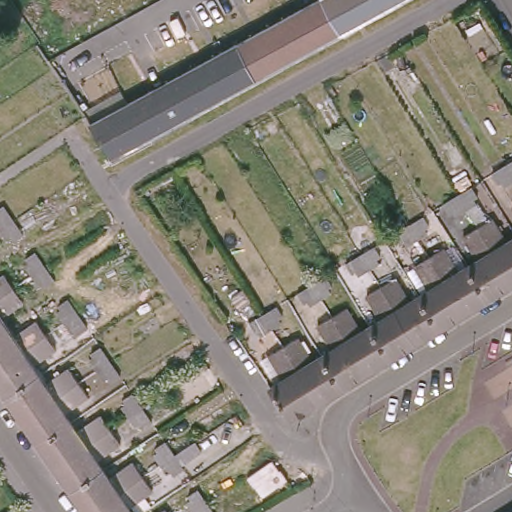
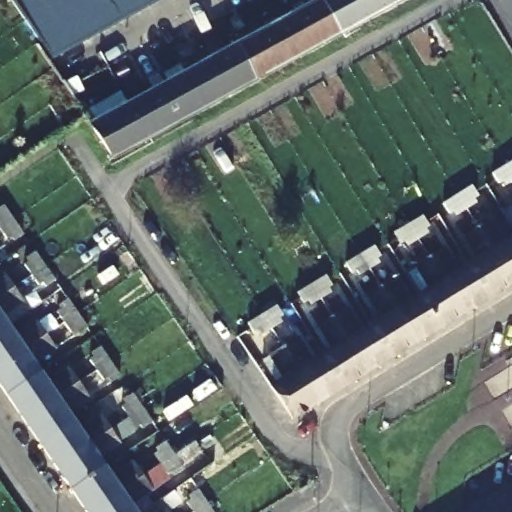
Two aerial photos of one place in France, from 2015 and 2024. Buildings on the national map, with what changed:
new [(12,0),(152,0),(52,59),(12,0)]
unchanged [(238,46),(322,0),(340,36),(257,81),(238,46)]
unchanged [(322,0),(407,0),(340,36),(322,0)]
unchanged [(114,159),(92,126),(238,46),(257,81),(114,159)]
demolished [(398,69),(412,93),(401,100),(387,76),(398,69)]
unchanged [(499,184),(493,174),(506,166),(512,162),(512,182),(507,185),(504,181),(499,184)]
unchanged [(455,212),(450,214),(444,204),(457,195),(472,188),(478,197),(474,200),(476,204),(467,210),(458,216),(455,212)]
unchanged [(24,234),(15,240),(12,237),(8,239),(1,229),(0,228),(0,209),(4,207),(14,220),(14,221),(24,234)]
unchanged [(405,242),(401,244),(395,234),(410,225),(424,217),(430,227),(425,230),(427,234),(418,239),(408,245),(405,242)]
unchanged [(502,247),(512,242),(512,286),(507,289),(472,233),(489,224),(502,247)]
unchanged [(472,265),(458,242),(472,233),(507,289),(482,304),(462,272),(472,265)]
unchanged [(357,272),(353,274),(346,264),(362,255),(375,247),(381,257),(377,260),(379,264),(370,269),(360,275),(357,272)]
unchanged [(55,281),(47,287),(44,284),(40,287),(33,276),(26,266),(30,264),(27,259),(36,253),(45,267),(47,269),(55,281)]
unchanged [(440,253),(455,277),(462,272),(482,304),(459,319),(424,263),(440,253)]
unchanged [(424,295),(410,272),(424,263),(459,319),(435,334),(415,302),(424,295)]
unchanged [(309,302),(304,304),(298,294),(313,285),(326,277),(332,287),(328,289),(330,294),(322,299),(312,305),(309,302)]
unchanged [(4,279),(15,294),(0,303),(0,282),(4,279)]
unchanged [(392,283),(407,306),(415,302),(435,334),(410,349),(376,293),(392,283)]
unchanged [(375,325),(361,302),(376,293),(410,349),(386,364),(366,331),(375,325)]
unchanged [(15,294),(25,309),(2,324),(7,333),(0,337),(0,303),(15,294)]
unchanged [(80,334),(77,330),(72,333),(66,324),(60,314),(63,311),(60,307),(70,301),(79,315),(89,329),(80,334)]
unchanged [(277,307),(283,317),(279,319),(281,323),(272,329),(262,335),(259,332),(255,334),(249,324),(264,315),(277,307)]
unchanged [(342,314),(357,336),(366,331),(386,364),(362,378),(328,322),(342,314)]
unchanged [(327,356),(312,332),(328,322),(362,378),(337,394),(317,362),(327,356)]
unchanged [(7,333),(14,342),(37,327),(47,341),(0,373),(0,337),(7,333)]
unchanged [(0,392),(0,373),(47,341),(57,356),(35,372),(40,380),(7,402),(0,392)]
unchanged [(278,353),(295,343),(309,367),(317,362),(337,394),(313,409),(278,353)]
unchanged [(120,377),(112,382),(109,379),(105,381),(97,370),(91,361),(95,358),(92,354),(100,348),(110,362),(111,363),(120,377)]
unchanged [(287,424),(268,392),(279,386),(264,362),(278,353),(313,409),(287,424)]
unchanged [(7,402),(40,380),(46,389),(69,374),(79,388),(23,426),(7,402)]
unchanged [(23,426),(79,388),(88,403),(66,419),(72,427),(39,449),(23,426)]
unchanged [(152,422),(144,427),(140,424),(137,426),(130,417),(123,407),(127,404),(124,399),(132,394),(142,408),(144,410),(152,422)]
unchanged [(39,449),(72,427),(78,436),(101,421),(110,434),(55,473),(39,449)]
unchanged [(121,449),(98,465),(104,473),(70,495),(55,473),(110,434),(121,449)]
unchanged [(175,474),(173,471),(169,474),(162,464),(156,455),(160,452),(157,448),(165,442),(175,456),(184,469),(175,474)]
unchanged [(70,495),(104,473),(110,483),(133,468),(143,483),(99,512),(82,512),(70,495)]
unchanged [(143,483),(154,497),(130,512),(99,512),(143,483)]
unchanged [(189,503),(192,499),(190,496),(199,491),(209,504),(213,512),(195,512),(189,503)]
unchanged [(512,512),(511,512),(512,511),(512,512)]

